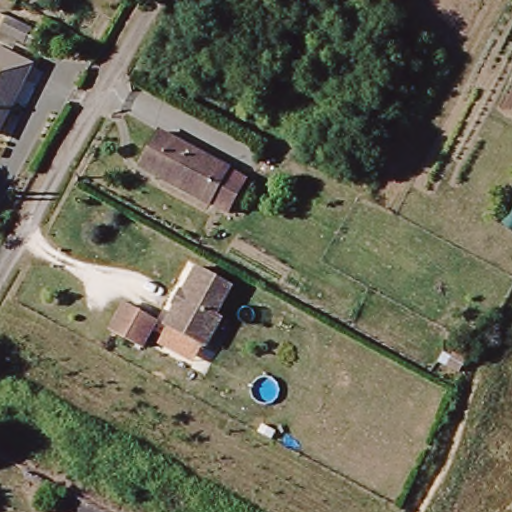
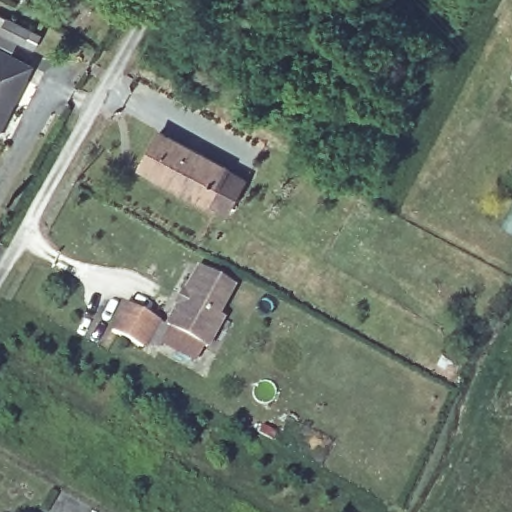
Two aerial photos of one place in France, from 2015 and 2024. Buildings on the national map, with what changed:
unchanged [(31,44),(0,30),(0,23),(4,14),(39,29),(31,44)]
unchanged [(9,97),(6,95),(0,108),(0,48),(27,62),(9,97)]
unchanged [(208,203),(142,167),(163,130),(229,166),(229,170),(244,176),(224,211),(212,202),(208,203)]
unchanged [(214,311),(222,315),(205,347),(165,326),(197,266),(229,283),(214,311)]
unchanged [(126,304),(156,321),(143,346),(113,330),(126,304)]

